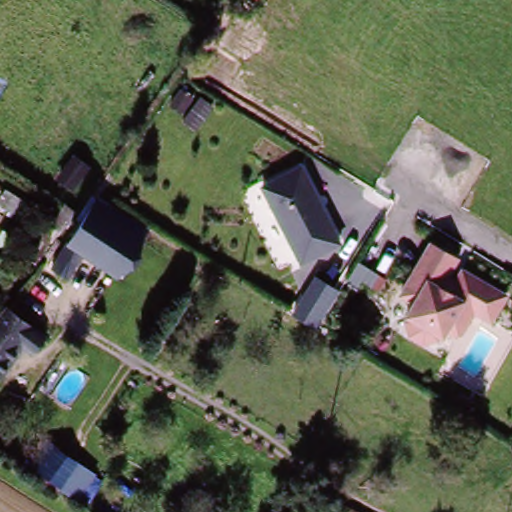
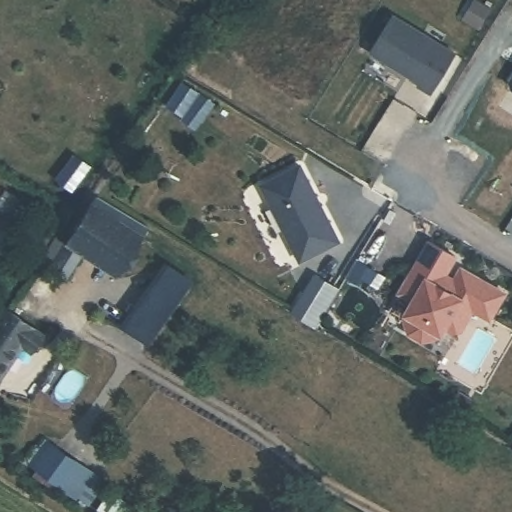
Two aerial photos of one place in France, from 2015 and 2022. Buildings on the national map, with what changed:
new [(393,15),(457,54),(433,94),(418,85),(420,82),(370,52),(393,15)]
demolished [(205,55),(219,65),(209,80),(195,71),(205,55)]
new [(511,89),(508,79),(512,74),(512,89),(511,89)]
unchanged [(339,241),(301,260),(266,182),(302,165),(339,241)]
unchanged [(45,279),(65,248),(61,246),(96,188),(149,221),(111,278),(79,258),(59,288),(45,279)]
unchanged [(442,274),(451,279),(458,269),(500,295),(486,319),(469,309),(455,330),(450,332),(442,328),(422,332),(410,325),(405,309),(410,295),(398,289),(428,240),(453,256),(442,274)]
new [(165,267),(192,283),(151,347),(124,331),(165,267)]
new [(339,289),(316,329),(290,314),(311,274),(339,289)]
unchanged [(41,337),(31,354),(19,345),(0,380),(0,312),(11,318),(29,327),(27,329),(41,337)]
unchanged [(75,499),(33,475),(55,445),(96,473),(75,499)]
unchanged [(511,456),(512,455),(512,456),(511,456)]

